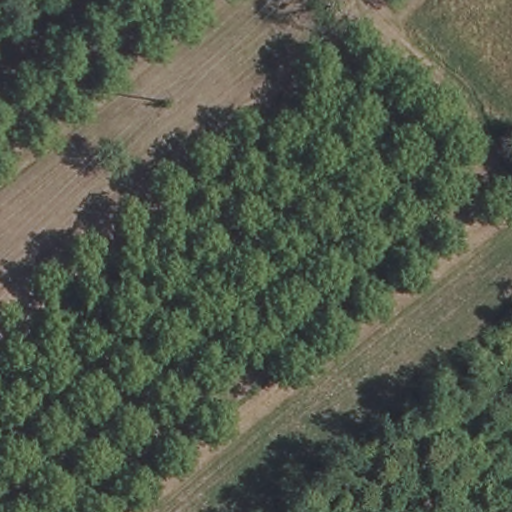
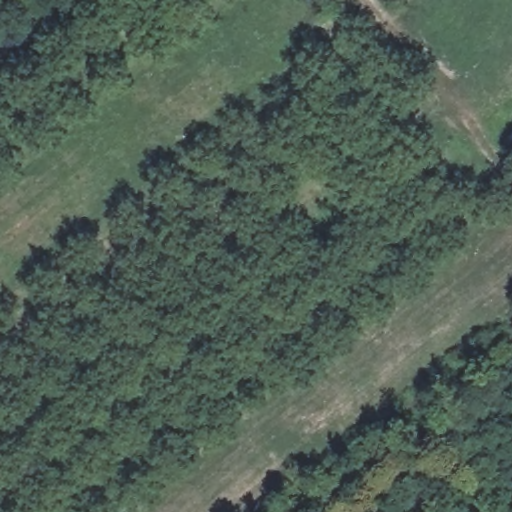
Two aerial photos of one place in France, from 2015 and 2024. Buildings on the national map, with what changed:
[]

